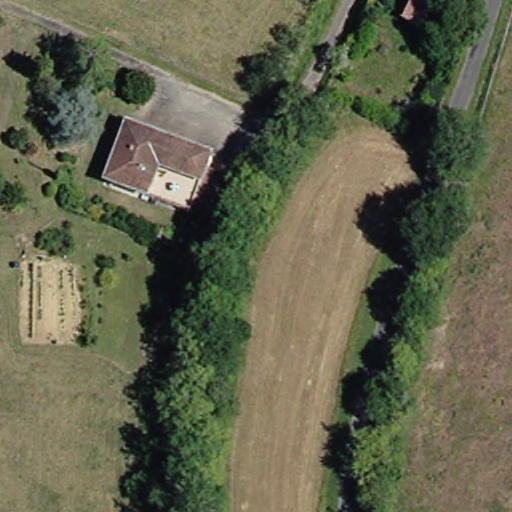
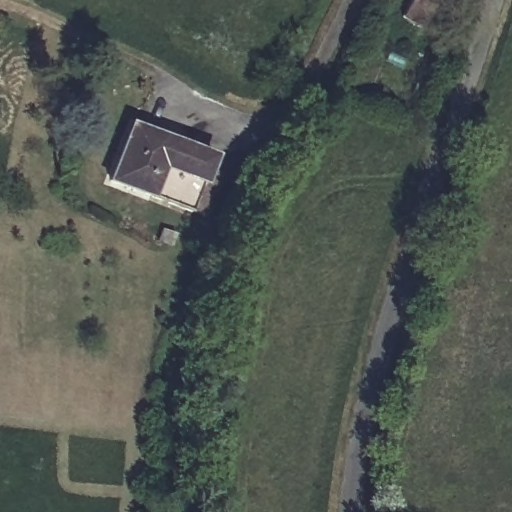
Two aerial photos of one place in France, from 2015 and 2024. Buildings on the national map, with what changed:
unchanged [(410,0),(435,0),(417,33),(398,22),(410,0)]
unchanged [(105,181),(125,135),(128,128),(145,135),(206,159),(202,172),(211,175),(221,179),(212,208),(201,205),(197,217),(126,190),(122,200),(109,195),(113,185),(105,181)]

